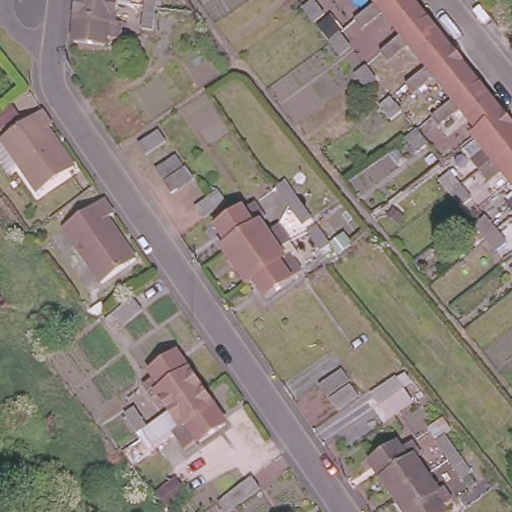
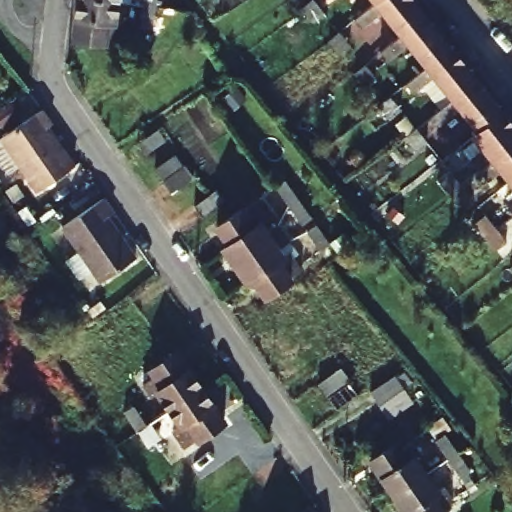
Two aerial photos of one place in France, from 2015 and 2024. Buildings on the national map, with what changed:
unchanged [(113,17),(122,19),(119,35),(104,34),(104,40),(72,36),(76,0),(116,0),(113,17)]
unchanged [(146,29),(149,7),(149,0),(162,0),(161,8),(158,30),(146,29)]
unchanged [(389,12),(369,28),(365,23),(363,20),(382,5),(388,0),(419,0),(432,16),(421,24),(407,35),(389,12)]
unchanged [(379,0),(388,0),(382,5),(379,0)]
unchanged [(317,4),(326,14),(316,23),(306,12),(305,10),(315,1),(317,4)]
unchanged [(415,45),(395,60),(391,54),(388,51),(407,35),(421,24),(432,16),(457,49),(447,57),(434,68),(415,45)]
unchanged [(352,47),(342,56),(331,43),(342,34),(342,35),(352,47)]
unchanged [(440,76),(420,91),(417,88),(414,84),(434,68),(447,57),(457,49),(484,81),(460,100),(440,76)]
unchanged [(377,78),(366,87),(357,76),(355,74),(366,65),(367,67),(377,78)]
unchanged [(467,108),(446,124),(441,118),(440,116),(460,100),(484,81),(510,114),(486,132),(467,108)]
unchanged [(395,100),(402,110),(392,119),(383,109),(381,107),(392,97),(395,100)]
unchanged [(72,166),(36,192),(0,143),(0,140),(41,110),(51,125),(46,129),(72,166)]
unchanged [(477,160),(489,151),(490,150),(480,137),(486,132),(510,114),(512,116),(512,151),(487,172),(477,160)]
unchanged [(428,142),(417,151),(407,139),(407,138),(417,129),(419,131),(428,142)]
unchanged [(147,154),(141,145),(159,131),(166,141),(147,154)]
unchanged [(507,173),(496,183),(487,172),(512,151),(512,179),(507,173)]
unchanged [(177,156),(183,166),(164,179),(158,170),(177,156)]
unchanged [(175,194),(167,182),(185,169),(194,181),(175,194)]
unchanged [(463,208),(452,195),(441,182),(452,173),(464,186),(474,199),(463,208)]
unchanged [(303,226),(292,209),(279,189),(283,186),(289,182),(302,201),(314,218),(303,226)]
unchanged [(205,220),(196,208),(220,192),(228,204),(205,220)]
unchanged [(107,218),(136,258),(102,282),(62,227),(102,199),(112,214),(107,218)]
unchanged [(217,227),(242,211),(244,213),(256,204),(267,221),(262,225),(270,234),(264,238),(259,242),(253,246),(246,237),(232,247),(231,247),(217,227)]
unchanged [(499,254),(488,240),(477,227),(488,218),(499,231),(510,245),(499,254)]
unchanged [(231,247),(232,247),(246,237),(253,246),(259,242),(264,238),(270,234),(282,226),(292,241),(283,247),(280,249),(276,252),(263,261),(266,264),(266,265),(269,269),(258,277),(253,280),(247,284),(225,251),(231,247)]
unchanged [(320,228),(332,247),(327,250),(323,253),(310,234),(314,231),(320,228)]
unchanged [(291,256),(302,272),(266,299),(253,280),(258,277),(269,269),(266,265),(266,264),(263,261),(276,252),(280,249),(287,258),(291,256)]
unchanged [(115,327),(106,315),(133,295),(142,306),(115,327)]
unchanged [(163,393),(157,397),(147,384),(159,376),(156,371),(181,353),(205,387),(174,408),(163,393)]
unchanged [(329,396),(322,385),(343,369),(351,379),(329,396)]
unchanged [(339,409),(331,399),(351,384),(359,394),(339,409)]
unchanged [(205,387),(230,423),(205,441),(201,435),(189,443),(179,429),(185,424),(174,408),(205,387)]
unchanged [(147,450),(135,432),(122,413),(132,406),(146,425),(158,442),(147,450)]
unchanged [(463,480),(451,461),(438,441),(447,435),(461,454),(473,472),(463,480)]
unchanged [(372,464),(397,446),(402,452),(414,444),(422,455),(416,460),(428,477),(396,498),(372,464)]
unchanged [(226,488),(217,477),(240,460),(249,471),(226,488)]
unchanged [(229,511),(221,501),(252,477),(260,486),(229,511)]
unchanged [(440,494),(445,491),(453,504),(442,512),(406,512),(396,498),(428,477),(440,494)]

